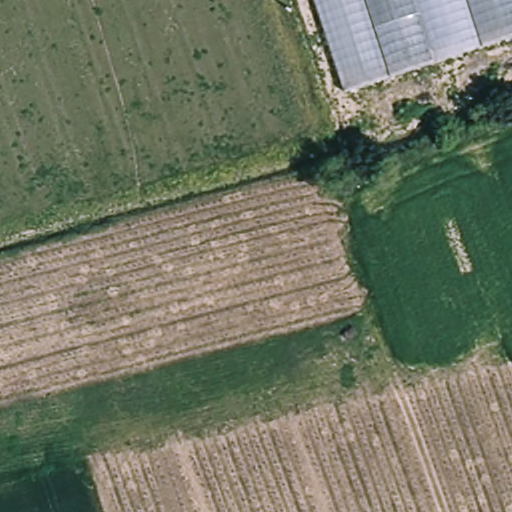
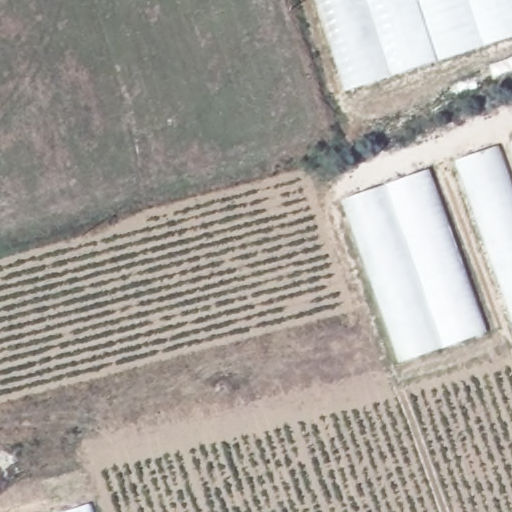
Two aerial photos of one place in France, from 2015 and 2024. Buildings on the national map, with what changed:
unchanged [(512,29),(343,87),(315,0),(512,0),(512,29)]
new [(499,146),(512,181),(512,322),(455,162),(499,146)]
new [(487,333),(398,364),(342,201),(430,170),(487,333)]
new [(59,512),(87,502),(90,512),(59,512)]

